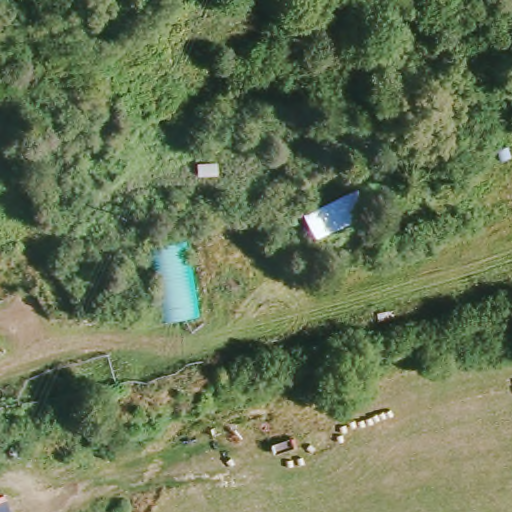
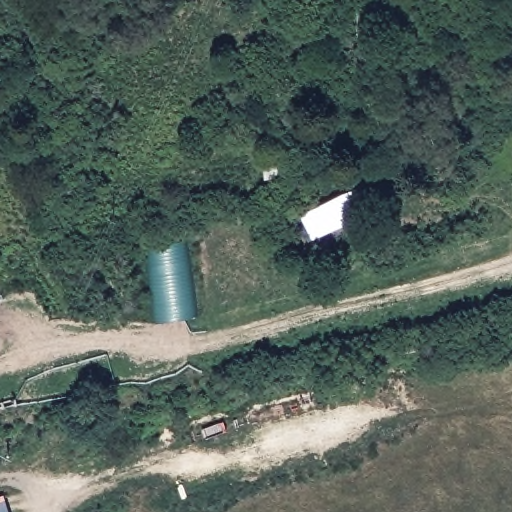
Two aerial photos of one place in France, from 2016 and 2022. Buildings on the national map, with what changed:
unchanged [(302,216),(362,187),(374,215),(316,244),(302,216)]
unchanged [(147,252),(187,245),(195,320),(157,324),(147,252)]

